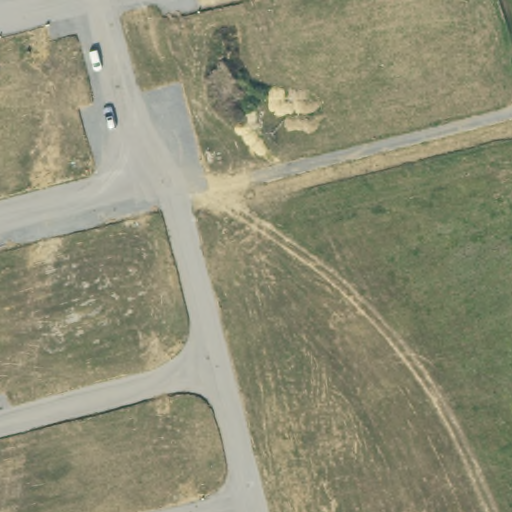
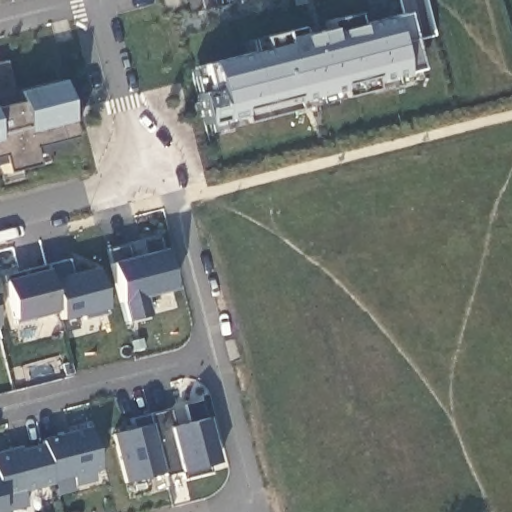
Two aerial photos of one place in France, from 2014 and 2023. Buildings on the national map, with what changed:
new [(207,65),(257,52),(252,40),(261,37),(282,33),(285,40),(297,37),(327,30),(325,22),(355,15),(357,25),(385,18),(405,15),(417,70),(420,78),(372,91),(342,99),(294,110),(243,123),(208,131),(205,125),(197,95),(191,71),(200,70),(200,67),(207,65)]
new [(7,63),(15,92),(59,81),(72,136),(61,139),(62,149),(32,156),(35,166),(2,173),(1,166),(0,166),(0,65),(7,63)]
new [(107,250),(159,237),(163,251),(174,291),(144,297),(148,316),(126,321),(120,301),(110,264),(107,250)]
new [(4,276),(68,260),(72,274),(96,268),(106,310),(59,322),(56,312),(14,322),(5,282),(4,276)]
new [(132,429),(131,420),(170,411),(175,427),(190,425),(185,406),(202,402),(206,418),(218,463),(207,466),(210,472),(182,479),(180,473),(164,477),(162,473),(126,483),(112,434),(132,429)]
new [(22,447),(22,448),(41,445),(40,441),(88,428),(101,471),(93,472),(95,482),(74,487),(71,477),(22,490),(27,507),(7,512),(0,512),(0,452),(22,447)]

